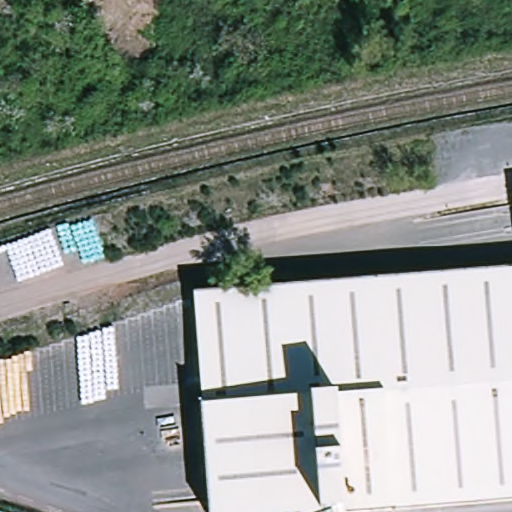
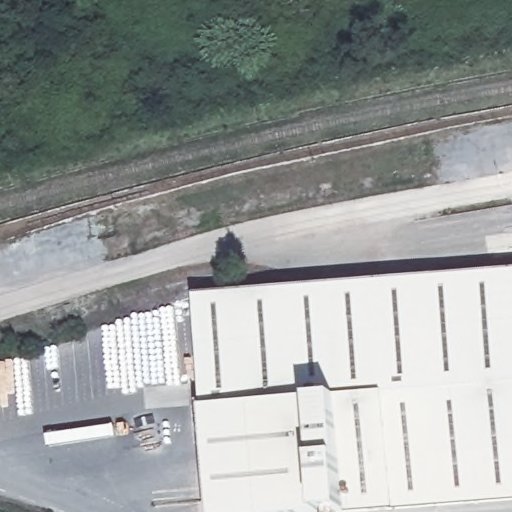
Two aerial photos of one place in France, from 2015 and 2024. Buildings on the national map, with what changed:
unchanged [(220,512),(202,291),(512,269),(512,498),(311,512),(220,512)]

